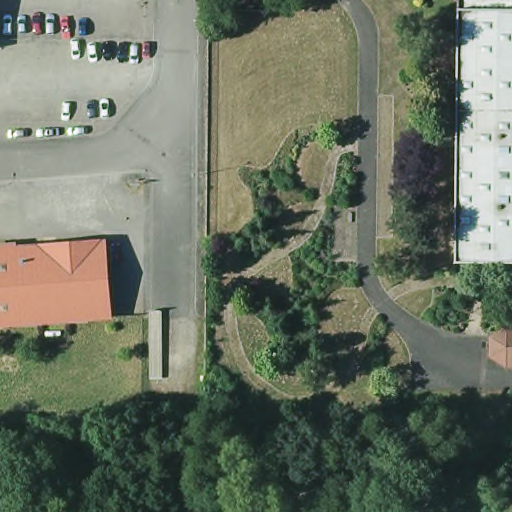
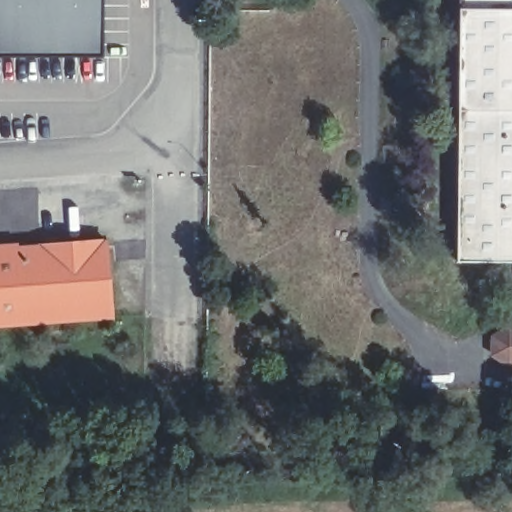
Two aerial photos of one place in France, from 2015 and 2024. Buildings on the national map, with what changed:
new [(0,54),(0,0),(103,0),(100,52),(0,54)]
unchanged [(462,0),(512,0),(512,263),(460,263),(462,0)]
unchanged [(113,243),(120,317),(0,327),(0,252),(113,243)]
unchanged [(509,328),(512,328),(512,366),(510,366),(495,352),(497,336),(509,328)]

